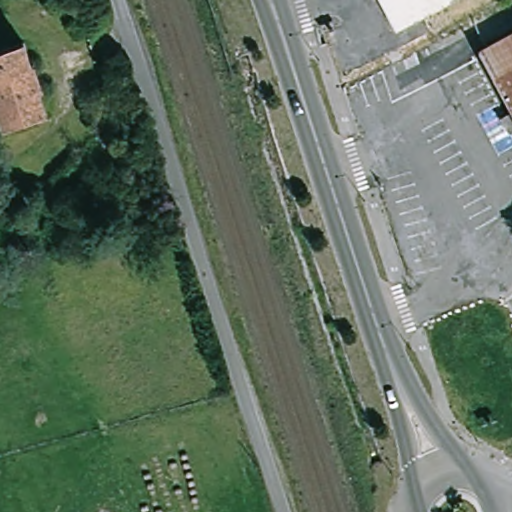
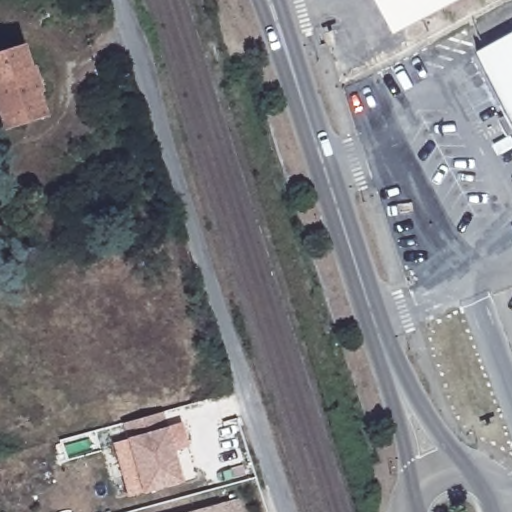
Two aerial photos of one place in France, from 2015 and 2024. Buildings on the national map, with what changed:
unchanged [(402,29),(386,0),(455,0),(402,29)]
unchanged [(510,135),(501,118),(509,114),(477,53),(512,34),(512,133),(510,135)]
unchanged [(41,90),(49,116),(6,130),(0,112),(0,53),(27,45),(35,69),(36,69),(43,90),(41,90)]
new [(161,412),(180,482),(141,493),(121,423),(161,412)]
new [(125,439),(141,493),(127,498),(112,444),(125,439)]
new [(239,512),(188,512),(236,500),(239,512)]

